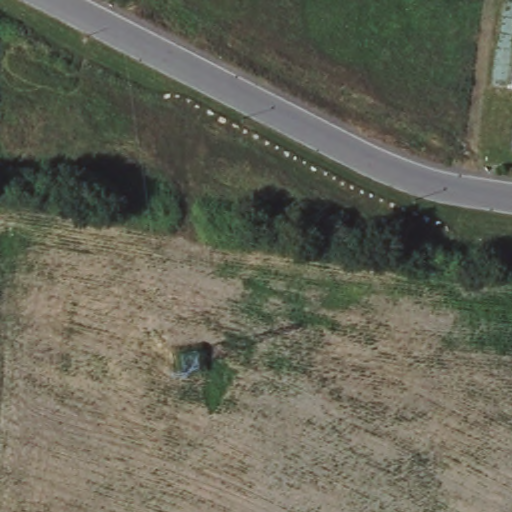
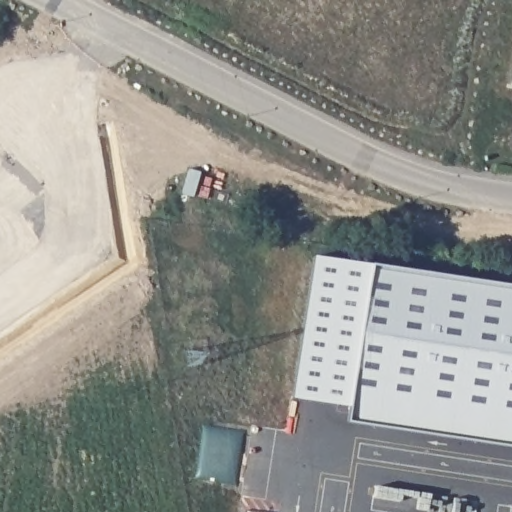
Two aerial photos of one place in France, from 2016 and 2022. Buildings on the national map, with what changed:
unchanged [(511,83),(512,80),(512,83),(511,83)]
new [(318,255),(373,263),(352,401),(351,403),(297,394),(318,255)]
new [(352,401),(373,263),(512,284),(512,426),(352,401)]
new [(351,403),(352,401),(512,426),(512,445),(350,421),(351,403)]

